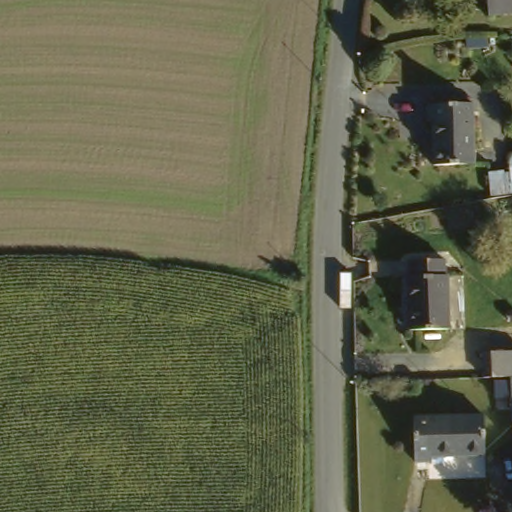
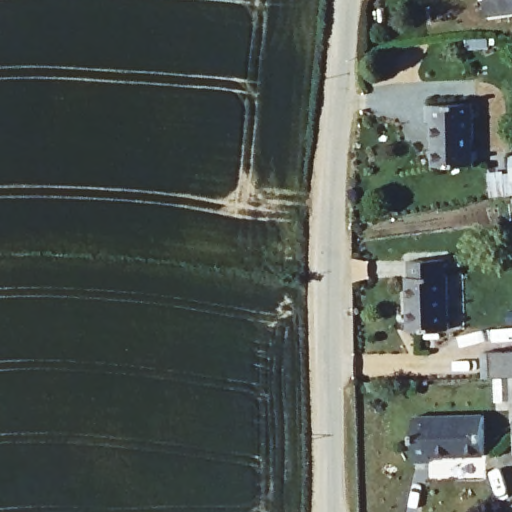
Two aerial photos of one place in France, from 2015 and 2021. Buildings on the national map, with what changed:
unchanged [(498,20),(495,0),(512,0),(512,18),(498,20)]
unchanged [(485,160),(438,159),(440,97),(485,96),(485,160)]
unchanged [(456,255),(453,326),(412,325),(416,255),(456,255)]
unchanged [(495,342),(512,343),(512,370),(494,370),(495,342)]
unchanged [(488,451),(416,450),(417,409),(488,411),(488,451)]

